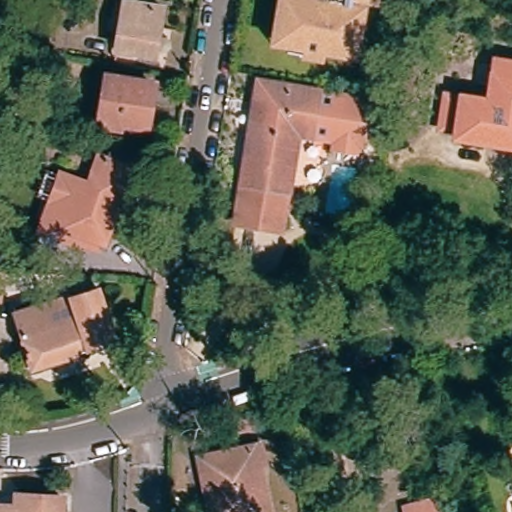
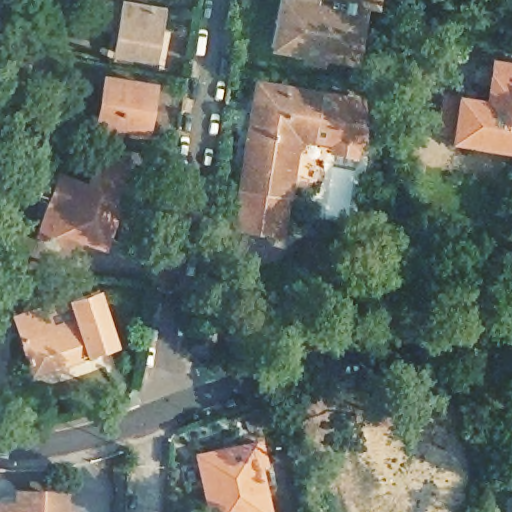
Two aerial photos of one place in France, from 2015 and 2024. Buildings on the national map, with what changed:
unchanged [(348,53),(323,49),(322,56),(306,53),(306,52),(307,46),(282,42),(273,40),(280,0),(357,0),(357,3),(366,4),(357,55),(348,53)]
unchanged [(162,11),(154,60),(115,53),(124,4),(162,11)]
unchanged [(426,45),(422,64),(406,62),(409,42),(426,45)]
unchanged [(456,133),(441,131),(446,100),(449,85),(464,87),(462,100),(487,104),(492,78),(493,78),(496,63),(512,66),(512,149),(455,139),(456,133)]
unchanged [(326,141),(327,132),(290,126),(281,184),(237,177),(254,76),(357,92),(357,93),(357,137),(351,136),(349,145),(326,141)]
unchanged [(105,77),(154,86),(147,132),(120,128),(119,133),(97,129),(105,77)]
unchanged [(103,159),(129,168),(126,177),(131,179),(141,182),(134,204),(123,200),(106,249),(104,248),(102,252),(84,245),(82,249),(49,238),(53,225),(49,224),(56,203),(47,200),(52,187),(56,174),(65,178),(93,188),(103,159)]
unchanged [(281,184),(274,224),(231,217),(237,177),(281,184)]
unchanged [(111,349),(31,373),(16,321),(42,313),(44,320),(72,311),(71,305),(96,298),(111,349)]
unchanged [(261,447),(265,466),(259,467),(268,512),(208,512),(197,460),(261,447)]
unchanged [(62,511),(62,512),(15,512),(16,507),(62,511)]
unchanged [(428,512),(417,512),(427,510),(428,512)]

